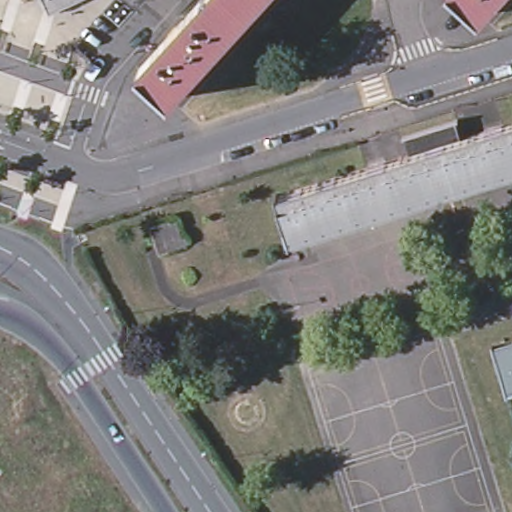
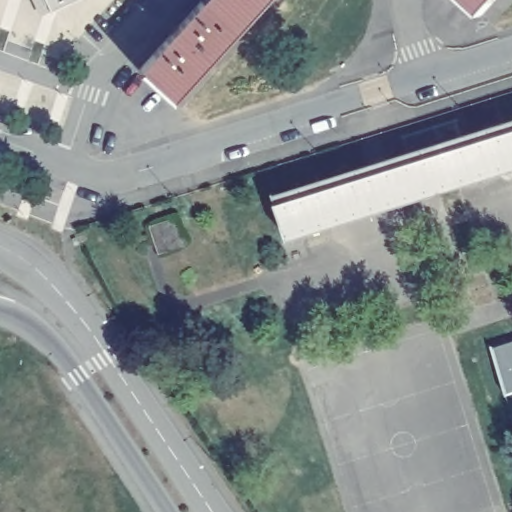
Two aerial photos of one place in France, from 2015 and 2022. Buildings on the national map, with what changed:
unchanged [(52,0),(81,0),(57,9),(52,0)]
unchanged [(200,0),(264,0),(175,99),(140,65),(200,0)]
unchanged [(499,0),(487,13),(473,0),(499,0)]
unchanged [(414,152),(408,133),(405,134),(404,132),(460,115),(461,117),(459,117),(464,136),(414,152)]
unchanged [(293,235),(293,237),(292,238),(277,192),(280,191),(281,193),(414,152),(464,136),(512,121),(512,167),(293,235)]
unchanged [(152,230),(150,230),(150,229),(153,228),(172,222),(173,225),(179,223),(184,239),(188,238),(190,245),(188,246),(188,247),(162,256),(160,257),(152,230)]
unchanged [(511,391),(509,392),(494,344),(496,344),(496,346),(512,341),(512,390),(511,390),(511,391)]

